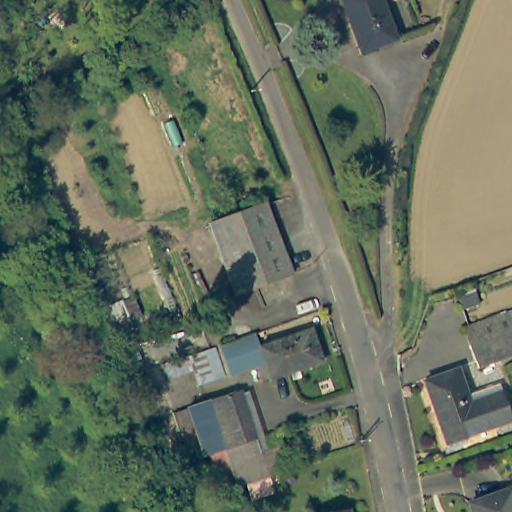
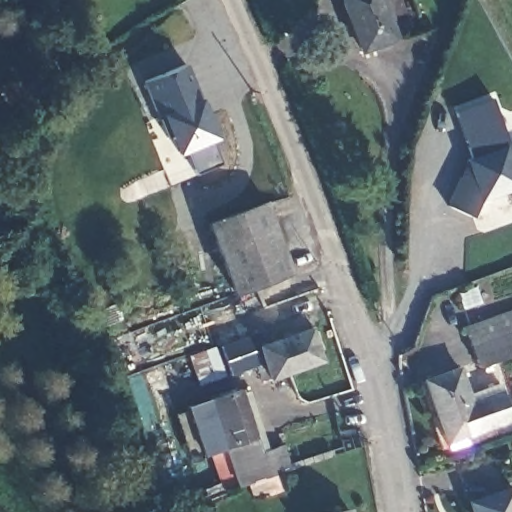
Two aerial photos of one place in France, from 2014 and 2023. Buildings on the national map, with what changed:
unchanged [(397,38),(361,52),(342,0),(382,0),(397,38)]
new [(165,136),(142,80),(151,77),(143,58),(172,47),(179,65),(184,63),(204,114),(201,104),(205,102),(209,112),(218,134),(211,137),(221,163),(171,183),(160,157),(176,150),(170,134),(165,136)]
new [(480,202),(473,216),(445,203),(464,159),(471,157),(453,110),(491,96),(512,155),(512,190),(480,202)]
unchanged [(231,289),(204,218),(261,197),(288,268),(231,289)]
unchanged [(490,356),(474,362),(466,340),(460,322),(512,304),(512,348),(490,356)]
unchanged [(114,350),(111,342),(101,323),(118,317),(131,343),(114,350)]
unchanged [(261,329),(265,341),(317,323),(328,356),(275,374),(275,372),(267,375),(262,361),(236,370),(226,341),(261,329)]
unchanged [(231,371),(205,380),(195,351),(221,342),(231,371)]
unchanged [(166,359),(180,354),(195,350),(195,351),(197,360),(199,365),(172,368),(166,359)]
unchanged [(461,442),(444,448),(420,380),(454,368),(463,395),(495,384),(498,391),(508,419),(459,437),(461,442)]
unchanged [(253,498),(248,484),(239,486),(225,491),(218,471),(211,452),(204,455),(200,443),(188,447),(181,429),(175,413),(189,408),(188,408),(241,389),(243,393),(248,391),(266,450),(283,445),(291,469),(282,473),(278,474),(283,489),(253,498)]
unchanged [(193,461),(180,465),(176,451),(188,447),(193,461)]
unchanged [(473,512),(470,503),(512,488),(512,512),(473,512)]
unchanged [(310,512),(348,505),(349,512),(310,512)]

